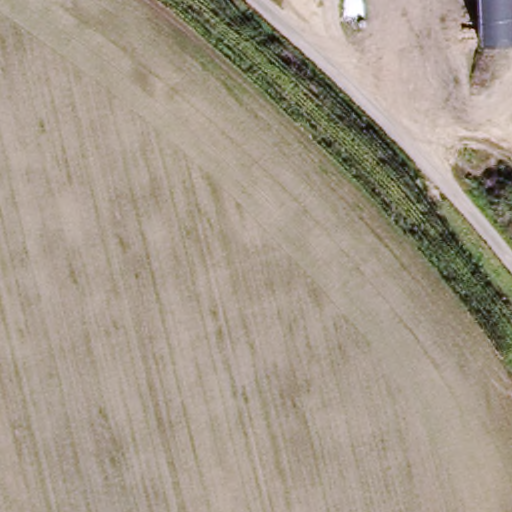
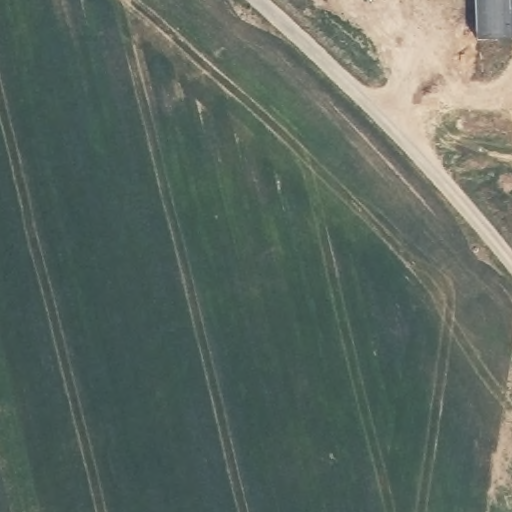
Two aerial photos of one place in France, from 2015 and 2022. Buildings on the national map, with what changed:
unchanged [(476,0),(512,0),(512,42),(477,44),(476,0)]

